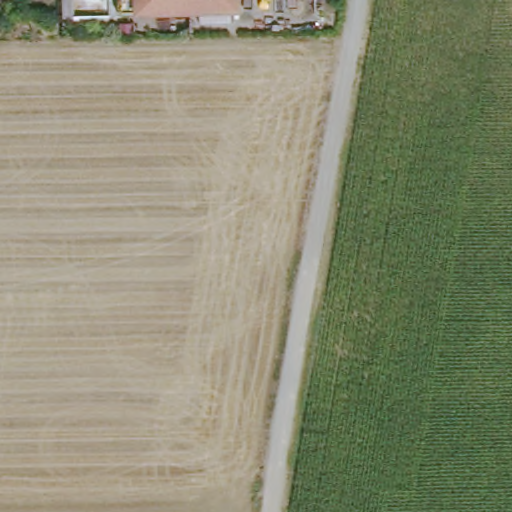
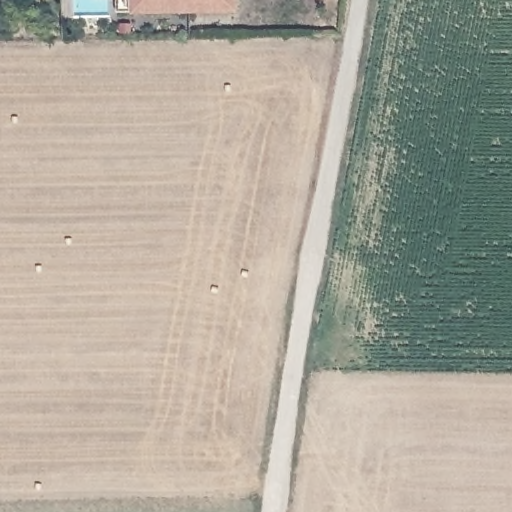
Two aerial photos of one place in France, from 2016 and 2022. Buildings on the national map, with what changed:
unchanged [(119,16),(118,0),(238,0),(239,13),(119,16)]

